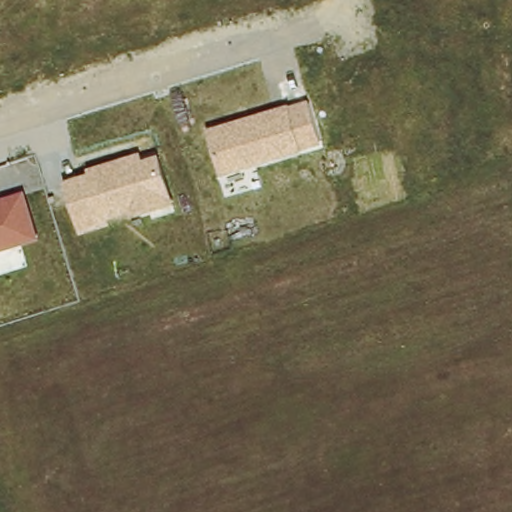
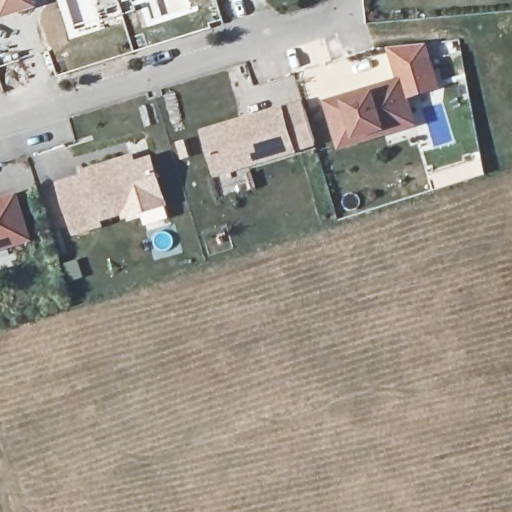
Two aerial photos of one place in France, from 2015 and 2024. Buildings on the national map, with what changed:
new [(37,8),(2,20),(0,15),(0,0),(34,0),(37,8)]
new [(394,47),(430,44),(443,87),(408,96),(403,79),(394,47)]
new [(360,140),(342,146),(329,102),(347,96),(349,101),(388,89),(387,84),(403,79),(408,96),(413,111),(417,123),(360,140)]
unchanged [(305,101),(317,147),(215,177),(202,131),(305,101)]
unchanged [(83,175),(82,170),(135,153),(137,161),(152,157),(169,207),(127,219),(125,215),(103,222),(105,228),(75,236),(58,182),(83,175)]
unchanged [(34,242),(0,253),(0,199),(19,193),(34,242)]

